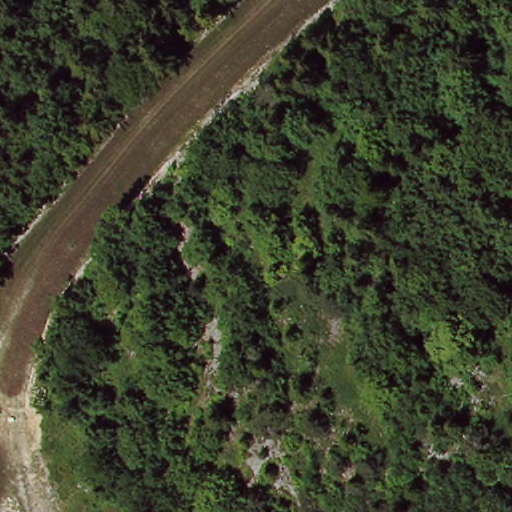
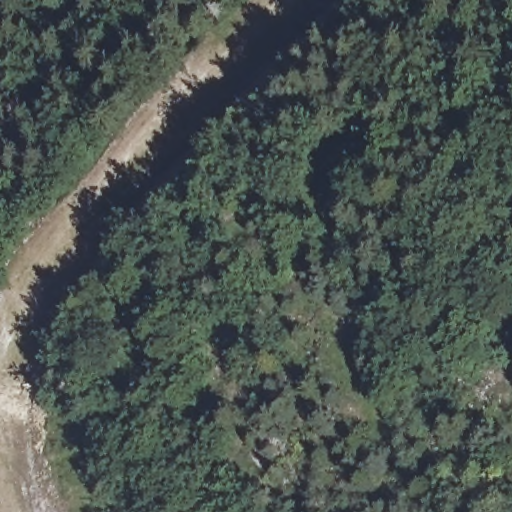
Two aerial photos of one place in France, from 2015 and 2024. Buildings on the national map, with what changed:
[]

